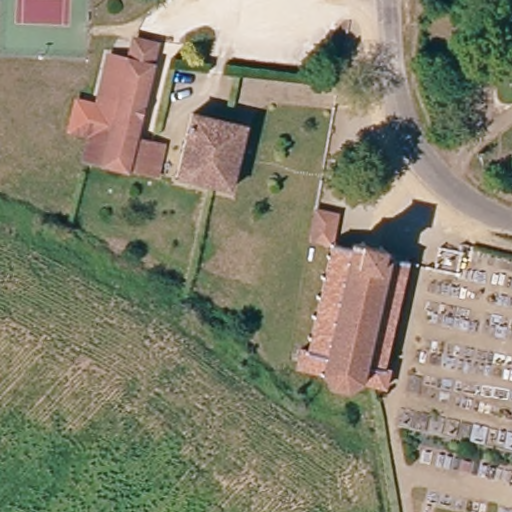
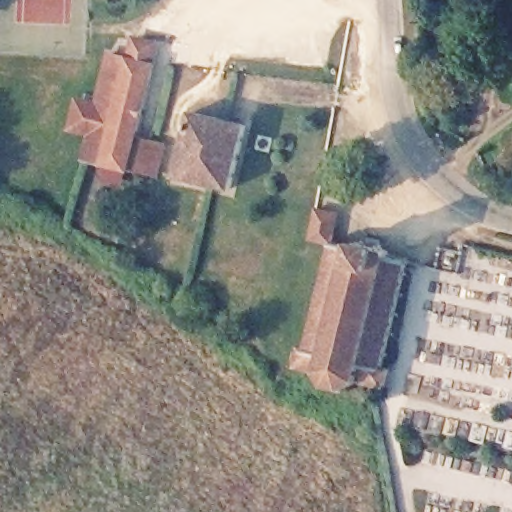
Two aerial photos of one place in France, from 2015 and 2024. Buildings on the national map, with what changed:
unchanged [(94,84),(102,51),(120,55),(121,56),(121,55),(124,56),(128,36),(130,37),(148,41),(143,60),(146,61),(129,134),(159,141),(153,165),(152,171),(121,165),(118,164),(77,156),(94,84)]
unchanged [(180,172),(196,108),(244,120),(228,184),(180,172)]
unchanged [(314,212),(337,218),(330,248),(308,242),(314,212)]
unchanged [(409,280),(408,288),(403,287),(400,298),(406,299),(404,308),(398,306),(395,319),(401,321),(400,328),(393,327),(390,342),(397,344),(395,351),(388,350),(383,368),(392,370),(386,397),(377,396),(369,425),(361,423),(364,410),(358,409),(362,394),(327,387),(317,373),(298,370),(301,358),(306,359),(308,347),(311,336),(306,335),(308,326),(313,328),(317,309),(312,308),(313,300),(318,302),(321,290),(316,288),(317,282),(322,283),(325,270),(320,268),(322,262),(327,263),(330,248),(349,252),(356,247),(384,252),(386,261),(408,266),(405,279),(409,280)]

